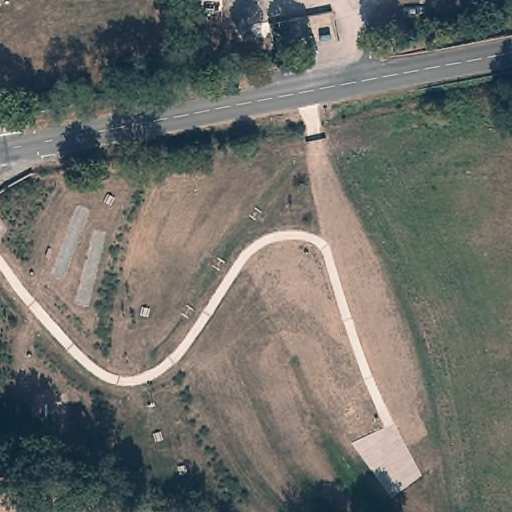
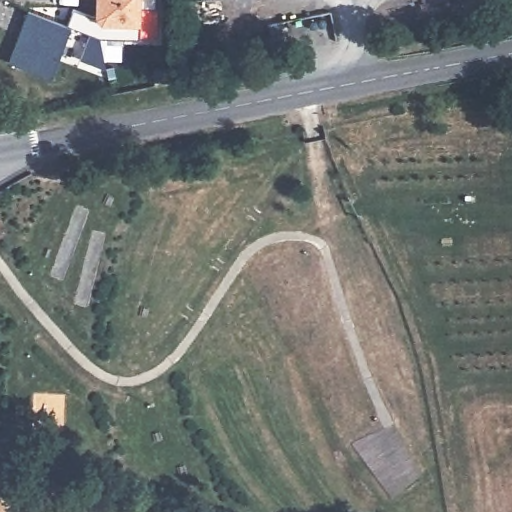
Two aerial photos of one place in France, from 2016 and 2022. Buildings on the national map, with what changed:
new [(67,26),(73,6),(95,14),(96,0),(156,0),(156,6),(141,6),(141,24),(140,24),(140,40),(100,38),(106,68),(106,69),(81,60),(90,34),(71,27),(67,26)]
new [(28,11),(71,27),(52,79),(9,63),(28,11)]

